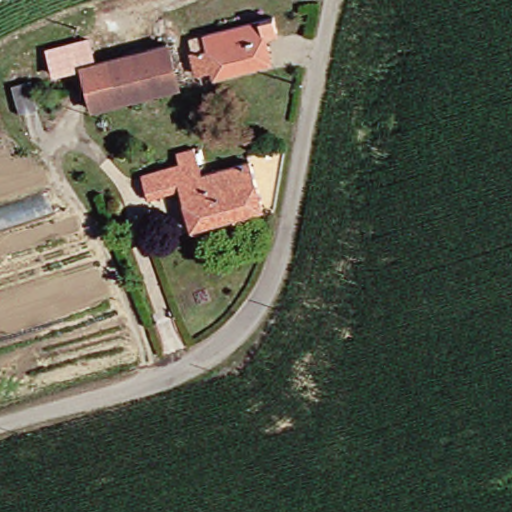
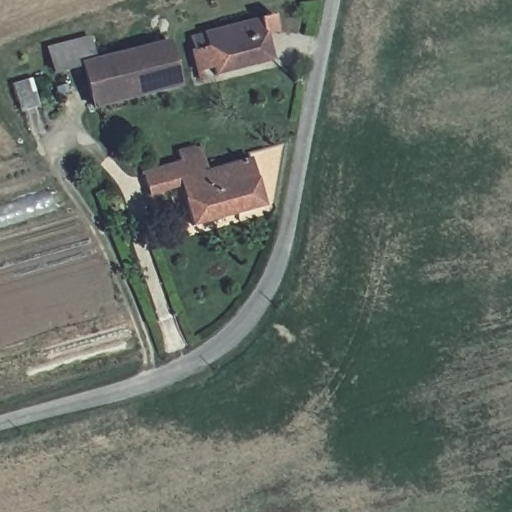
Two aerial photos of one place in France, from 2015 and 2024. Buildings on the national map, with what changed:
unchanged [(279,57),(225,72),(223,66),(207,70),(204,62),(190,66),(188,51),(200,49),(200,37),(276,16),(282,31),(279,57)]
unchanged [(56,65),(51,48),(78,38),(85,58),(56,65)]
unchanged [(168,46),(179,84),(136,95),(128,57),(168,46)]
unchanged [(128,57),(136,95),(88,108),(79,69),(128,57)]
unchanged [(30,79),(37,107),(20,112),(11,84),(30,79)]
unchanged [(206,170),(253,156),(268,202),(198,222),(187,186),(152,195),(145,174),(203,157),(206,170)]

